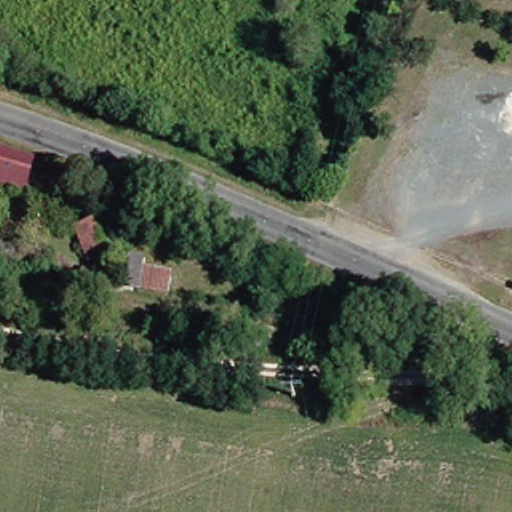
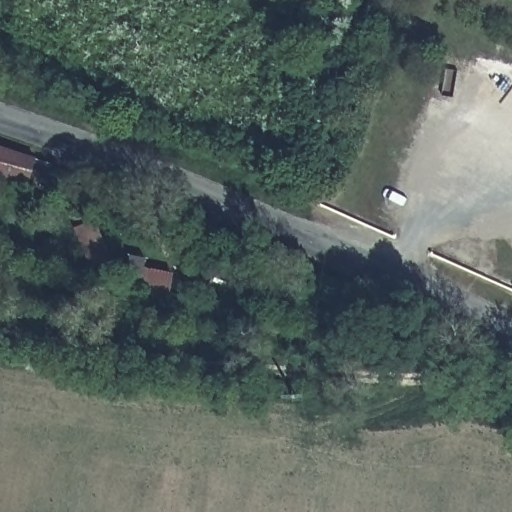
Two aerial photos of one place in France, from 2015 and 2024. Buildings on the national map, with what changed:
unchanged [(0,140),(28,150),(39,153),(36,166),(31,184),(0,176),(0,140)]
unchanged [(139,219),(154,225),(149,238),(134,232),(139,219)]
unchanged [(95,221),(108,254),(91,261),(78,228),(95,221)]
unchanged [(136,257),(151,260),(149,270),(177,276),(173,295),(130,286),(136,257)]

